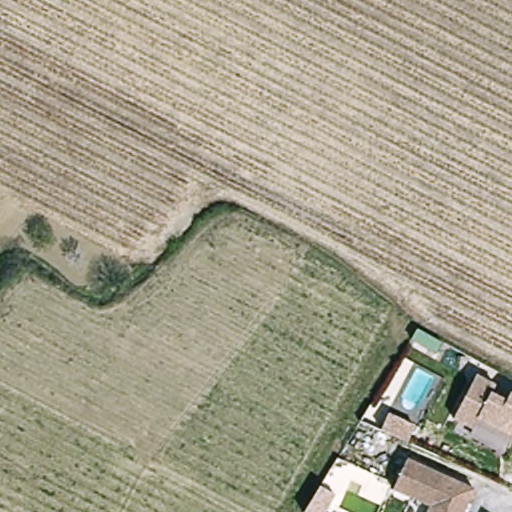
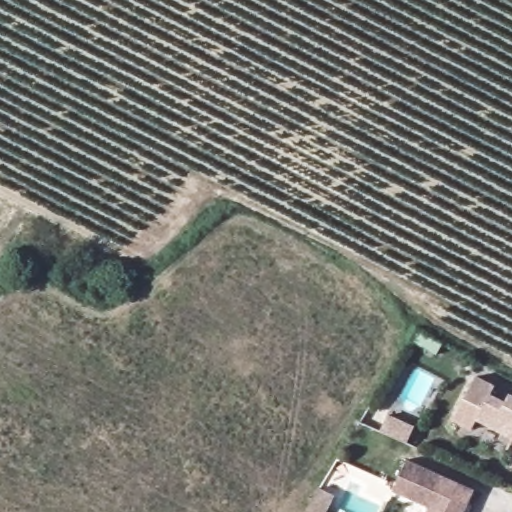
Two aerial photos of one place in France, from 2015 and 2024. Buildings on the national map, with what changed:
unchanged [(512,393),(512,436),(479,420),(474,430),(456,421),(478,376),(497,385),(493,393),(508,400),(512,393)]
unchanged [(425,512),(427,508),(390,493),(403,461),(471,490),(461,512),(425,512)]

